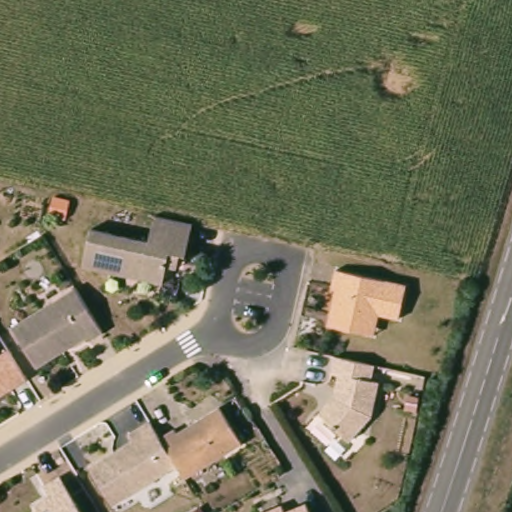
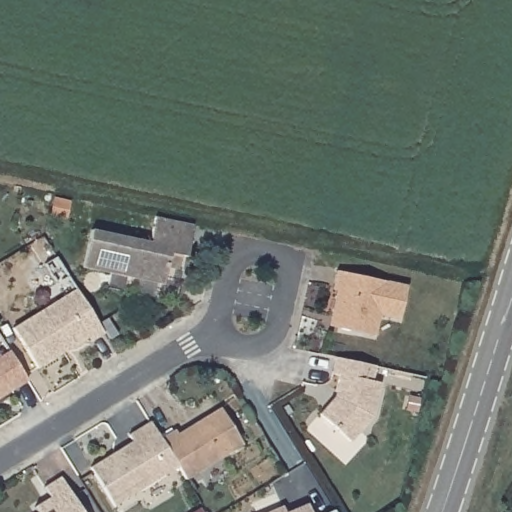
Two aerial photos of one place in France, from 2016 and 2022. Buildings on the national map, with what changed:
unchanged [(161,265),(158,283),(78,266),(85,229),(144,241),(150,215),(188,224),(184,238),(180,255),(174,255),(171,267),(161,265)]
unchanged [(356,332),(332,327),(324,316),(330,290),(327,288),(330,270),(401,285),(392,328),(371,324),(369,335),(356,332)]
unchanged [(76,287),(104,331),(90,340),(87,335),(37,366),(13,326),(76,287)]
unchanged [(29,376),(0,394),(0,355),(11,349),(29,376)]
unchanged [(374,360),(371,376),(379,377),(372,411),(349,436),(319,409),(334,391),(339,370),(331,368),(334,351),(374,360)]
unchanged [(219,406),(242,442),(185,477),(185,478),(177,465),(160,437),(174,428),(177,432),(219,406)]
unchanged [(155,437),(172,465),(108,504),(84,466),(109,451),(110,455),(119,449),(118,446),(127,440),(123,433),(144,420),(155,437)]
unchanged [(37,512),(38,511),(34,505),(49,495),(44,485),(60,475),(83,512),(37,512)]
unchanged [(284,511),(306,502),(310,512),(265,512),(282,505),(284,511)]

